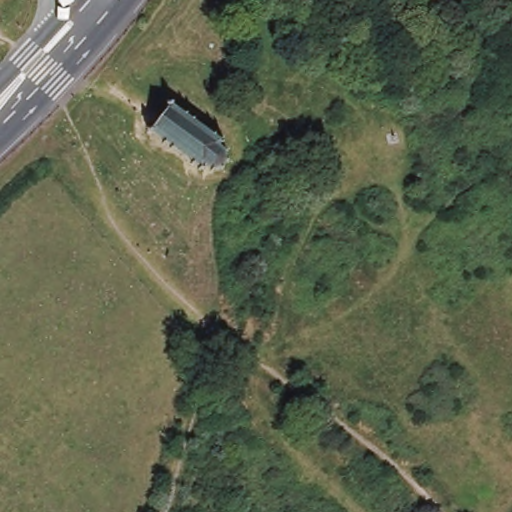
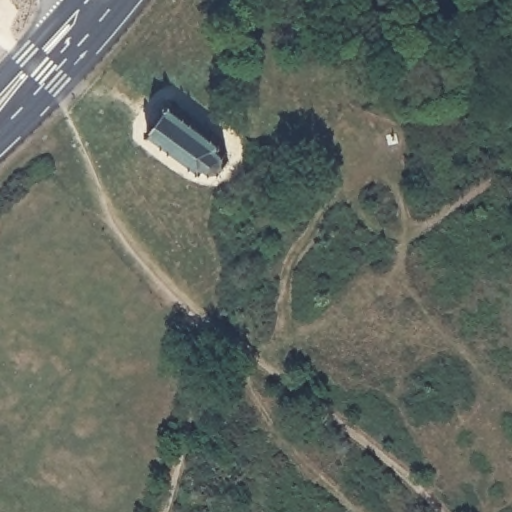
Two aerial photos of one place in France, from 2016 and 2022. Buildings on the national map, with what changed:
unchanged [(224,145),(228,142),(230,142),(232,145),(230,147),(238,151),(237,157),(232,156),(231,159),(236,162),(232,167),(226,164),(223,167),(229,172),(226,175),(221,173),(217,177),(211,172),(209,174),(205,171),(207,166),(200,161),(198,163),(195,160),(197,157),(184,145),(180,150),(174,144),(176,141),(165,132),(163,136),(154,129),(171,105),(176,102),(185,109),(181,111),(194,120),(199,115),(204,119),(199,125),(212,137),(217,132),(220,134),(216,138),(224,145)]

